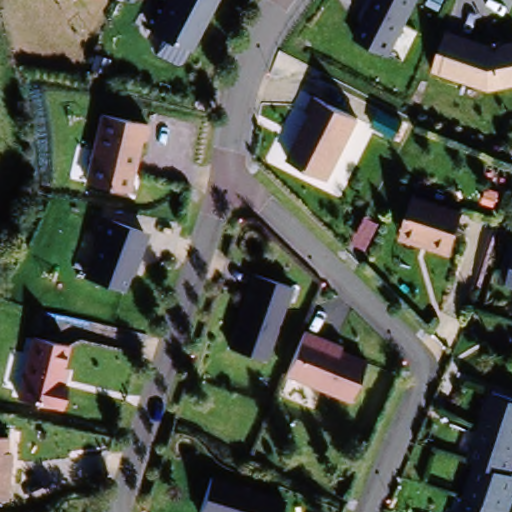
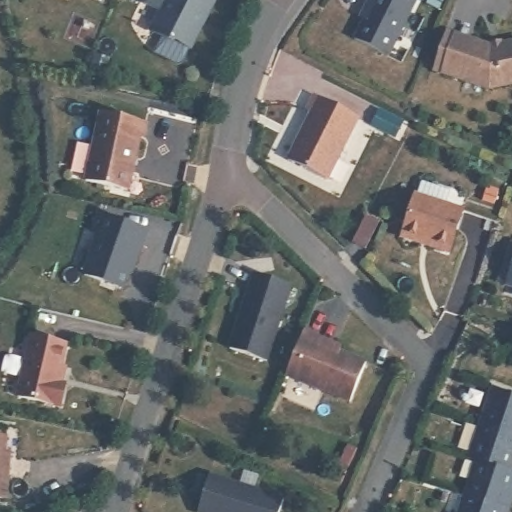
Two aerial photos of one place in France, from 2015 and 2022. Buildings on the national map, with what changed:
unchanged [(164,0),(214,0),(190,49),(170,40),(151,32),(164,0)]
unchanged [(368,8),(365,6),(368,0),(416,0),(386,57),(352,40),(368,8)]
unchanged [(512,86),(487,90),(439,74),(430,71),(442,32),(451,36),(487,48),(512,44),(512,86)]
unchanged [(355,119),(327,184),(287,165),(308,117),(303,115),(310,100),(355,119)]
unchanged [(97,115),(140,126),(123,194),(81,182),(97,115)]
unchanged [(444,252),(398,237),(412,196),(458,212),(444,252)]
unchanged [(125,275),(121,288),(82,276),(95,235),(90,233),(95,216),(140,230),(135,245),(139,246),(131,270),(125,275)]
unchanged [(512,248),(512,277),(503,275),(512,248)]
unchanged [(270,361),(235,350),(260,275),(295,287),(270,361)]
unchanged [(17,393),(31,335),(67,345),(57,381),(62,382),(56,405),(16,395),(17,393)]
unchanged [(310,347),(360,367),(344,406),(280,380),(297,337),(312,342),(310,347)]
unchanged [(512,394),(512,430),(479,418),(490,386),(512,394)]
unchanged [(479,418),(512,430),(512,452),(507,466),(476,455),(468,453),(479,418)]
unchanged [(0,467),(0,442),(5,443),(0,467)]
unchanged [(507,466),(512,467),(512,469),(500,504),(463,491),(476,455),(507,466)]
unchanged [(4,475),(0,493),(0,474),(4,475)]
unchanged [(287,501),(283,512),(202,512),(212,479),(287,501)]
unchanged [(456,512),(463,491),(500,504),(498,512),(456,512)]

